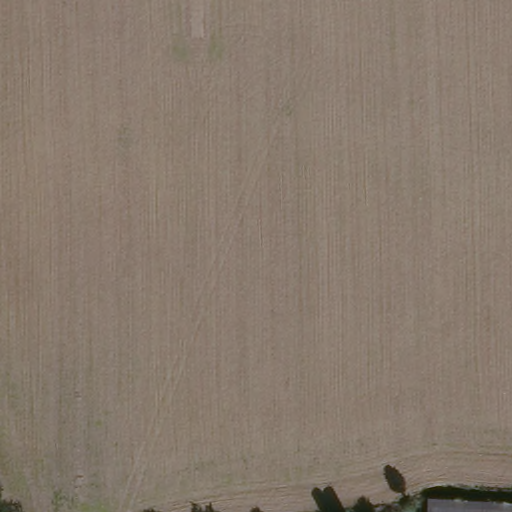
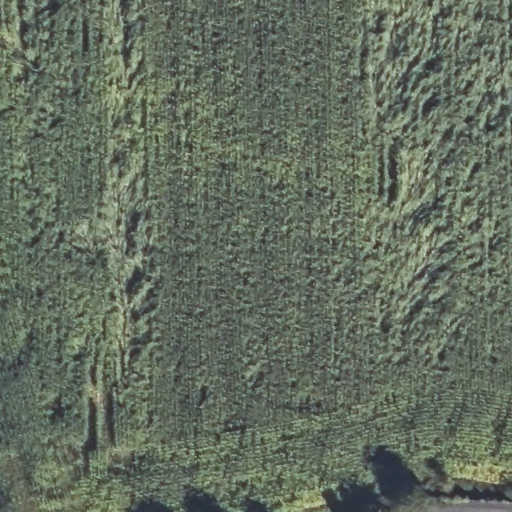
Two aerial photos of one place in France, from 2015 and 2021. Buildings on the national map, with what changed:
unchanged [(433,502),(512,505),(512,512),(433,512),(433,502)]

